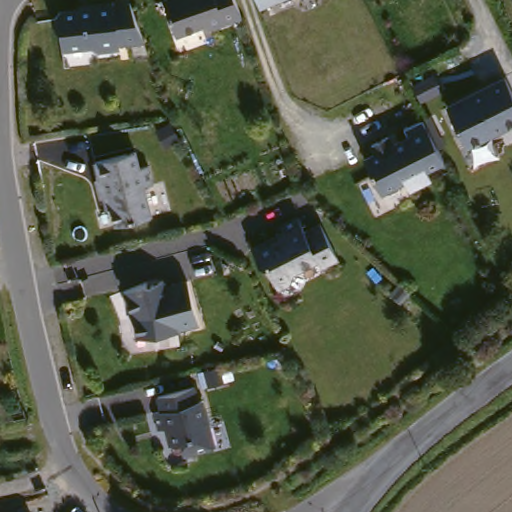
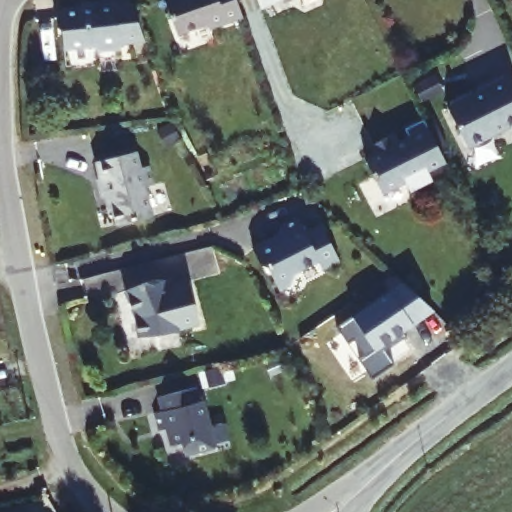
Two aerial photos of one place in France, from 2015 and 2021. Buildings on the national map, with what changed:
unchanged [(231,17),(232,21),(201,33),(195,30),(168,40),(155,5),(167,0),(225,0),(231,17)]
unchanged [(251,10),(248,0),(273,0),(251,10)]
unchanged [(114,43),(114,48),(92,50),(85,44),(57,47),(55,28),(51,25),(50,15),(55,10),(84,7),(84,3),(108,1),(110,7),(125,2),(138,41),(114,43)]
unchanged [(431,84),(451,74),(459,90),(439,100),(431,84)]
unchanged [(512,107),(512,123),(460,150),(440,110),(498,80),(512,107)]
unchanged [(442,160),(441,160),(422,169),(427,178),(405,189),(401,180),(377,192),(360,159),(371,153),(366,144),(383,136),(388,145),(406,136),(401,127),(420,117),(442,160)]
unchanged [(147,188),(139,189),(144,219),(106,225),(103,207),(101,207),(99,196),(94,197),(91,178),(94,177),(91,161),(133,154),(136,171),(144,169),(147,188)]
unchanged [(329,261),(312,269),(308,261),(284,272),(281,283),(269,289),(257,266),(251,263),(243,248),(265,237),(267,241),(277,237),(271,226),(288,217),(296,232),(311,225),(329,261)]
unchanged [(181,281),(192,323),(170,329),(170,331),(130,336),(128,317),(118,290),(139,282),(145,285),(156,280),(159,287),(181,281)]
new [(335,328),(401,282),(431,311),(411,325),(402,331),(405,336),(384,351),(393,364),(371,380),(358,361),(347,345),(335,328)]
unchanged [(221,368),(236,365),(239,379),(224,382),(221,368)]
unchanged [(175,443),(165,446),(161,428),(154,431),(150,413),(157,412),(153,397),(190,388),(193,403),(198,402),(209,448),(185,453),(178,456),(175,443)]

